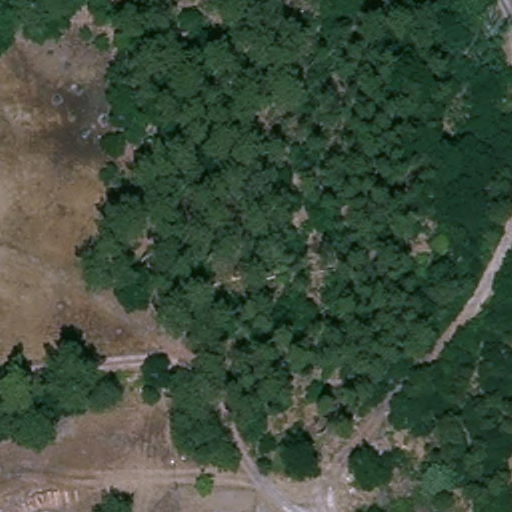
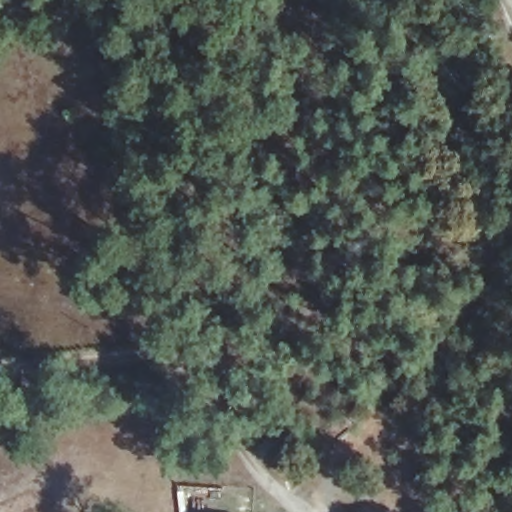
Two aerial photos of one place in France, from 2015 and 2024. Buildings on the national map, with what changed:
[]

